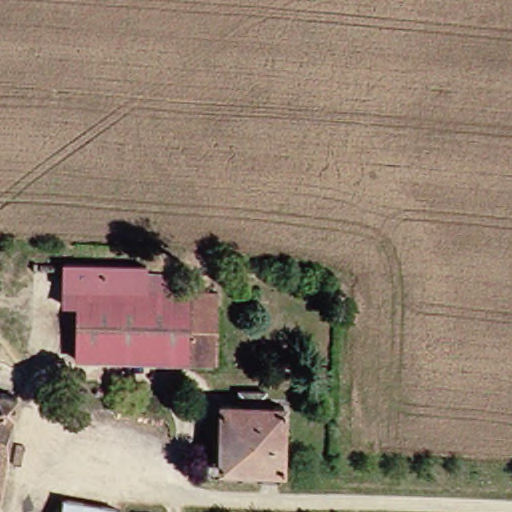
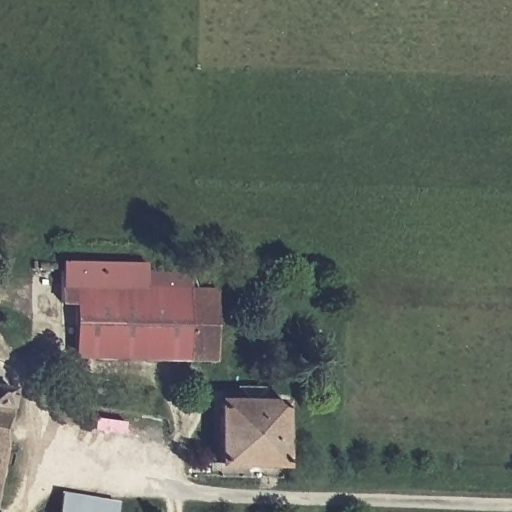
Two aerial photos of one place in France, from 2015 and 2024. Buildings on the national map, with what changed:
unchanged [(212,285),(208,360),(69,355),(69,301),(57,300),(58,280),(212,285)]
unchanged [(12,392),(0,468),(0,391),(12,392)]
unchanged [(277,397),(274,460),(210,455),(214,392),(277,397)]
unchanged [(112,502),(112,512),(55,512),(56,497),(112,502)]

